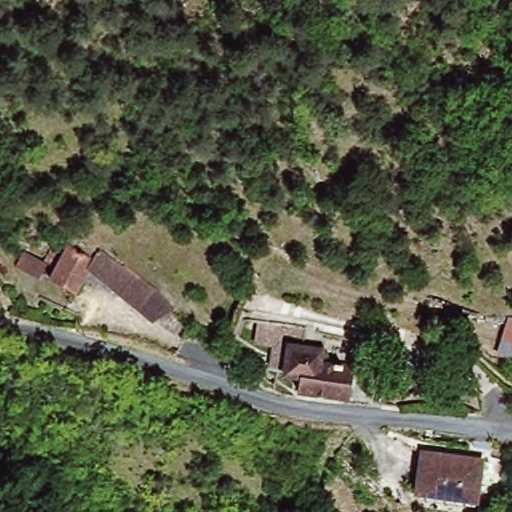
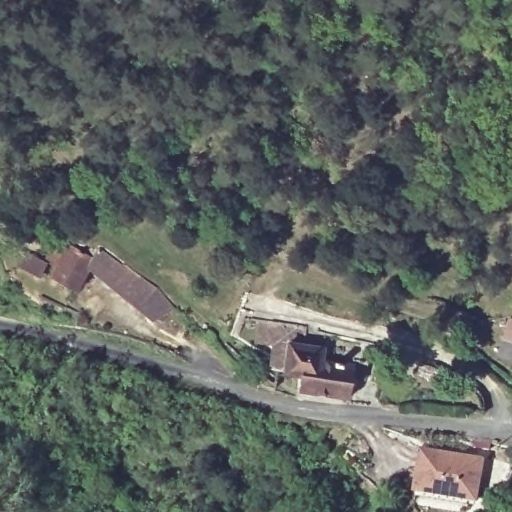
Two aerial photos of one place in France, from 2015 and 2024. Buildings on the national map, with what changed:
unchanged [(50,263),(38,258),(43,247),(57,254),(64,242),(92,257),(98,249),(153,289),(170,310),(147,321),(84,270),(72,291),(44,275),(50,263)]
unchanged [(512,320),(512,365),(495,359),(507,318),(512,320)]
unchanged [(292,375),(278,373),(263,371),(265,347),(248,345),(250,323),(300,328),(298,345),(320,347),(322,362),(348,366),(344,401),(292,393),(292,375)]
unchanged [(463,496),(415,489),(422,457),(469,465),(463,496)]

